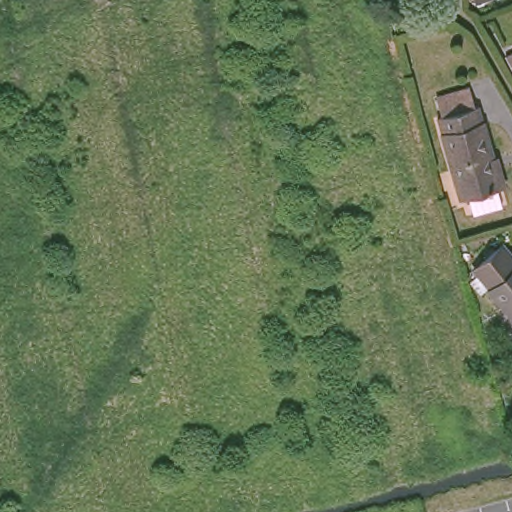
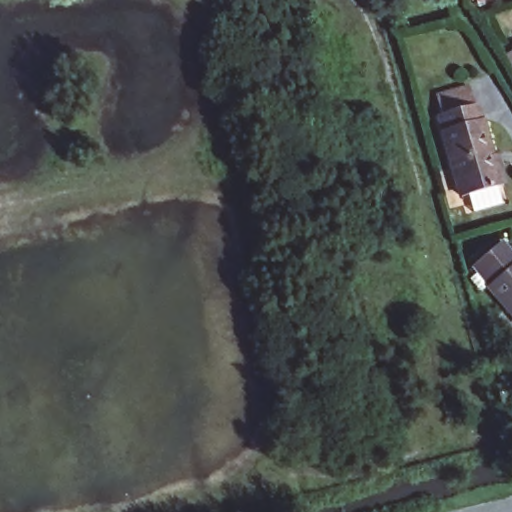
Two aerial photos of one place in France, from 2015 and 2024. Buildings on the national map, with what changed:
unchanged [(488,150),(493,149),(500,173),(458,185),(435,103),(473,93),(488,150)]
unchanged [(512,254),(512,319),(485,281),(487,279),(472,260),(500,237),(512,254)]

